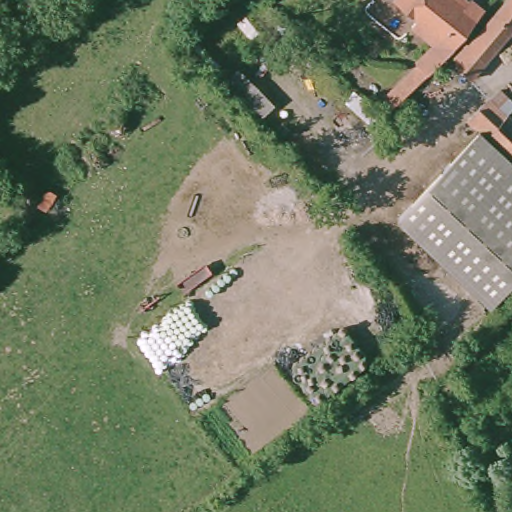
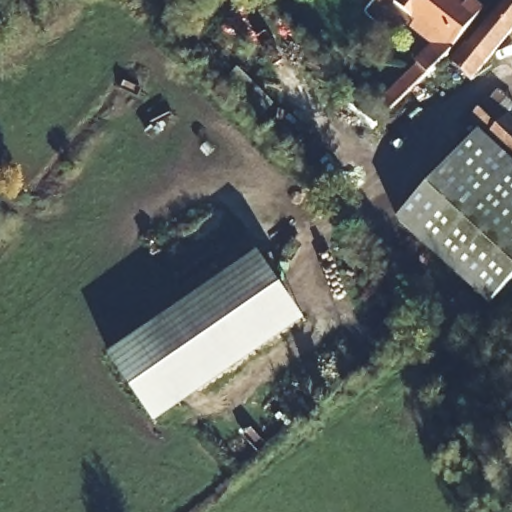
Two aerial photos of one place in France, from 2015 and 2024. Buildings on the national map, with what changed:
unchanged [(438,0),(436,2),(452,17),(458,9),(471,20),(451,45),(422,20),(416,25),(396,8),(398,6),(403,0),(438,0)]
unchanged [(454,65),(491,22),(488,20),(505,0),(512,0),(512,32),(470,81),(454,65)]
unchanged [(475,87),(512,121),(512,184),(501,174),(510,163),(477,133),(460,117),(456,120),(450,114),(475,87)]
unchanged [(510,163),(501,174),(512,184),(512,286),(505,294),(488,311),(393,221),(477,133),(510,163)]
new [(156,424),(110,355),(259,252),(306,321),(156,424)]

